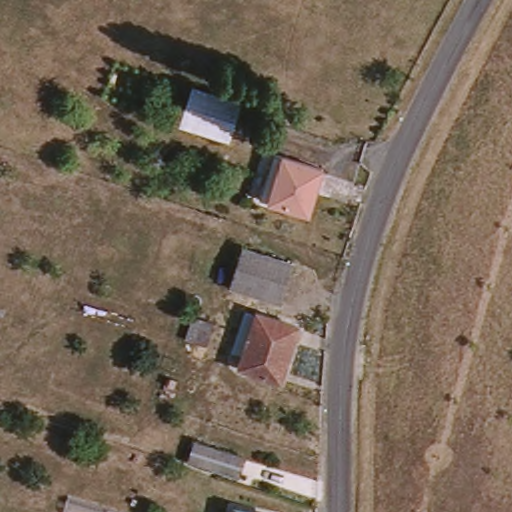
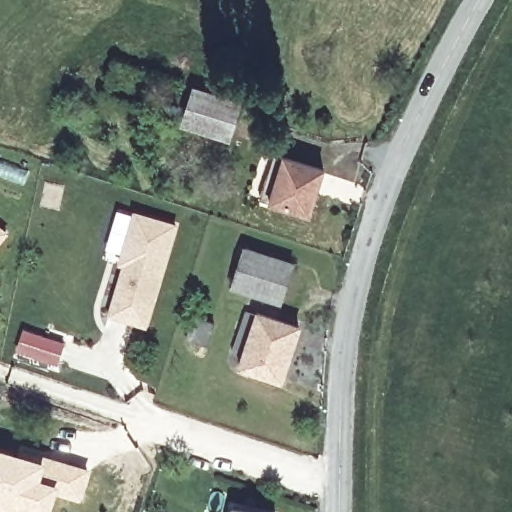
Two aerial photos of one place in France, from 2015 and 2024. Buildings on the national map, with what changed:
unchanged [(239,109),(228,144),(182,129),(193,94),(239,109)]
unchanged [(323,171),(310,215),(261,200),(275,156),(323,171)]
new [(133,212),(179,224),(149,327),(108,316),(123,265),(118,264),(133,212)]
new [(14,230),(0,249),(0,218),(14,230)]
unchanged [(292,264),(280,300),(232,285),(245,249),(292,264)]
unchanged [(213,324),(206,345),(186,338),(193,318),(213,324)]
unchanged [(299,332),(281,387),(239,374),(244,359),(233,355),(245,318),(256,321),(257,318),(299,332)]
new [(21,328),(64,342),(56,366),(13,351),(21,328)]
new [(42,459),(44,453),(91,468),(81,502),(56,494),(50,512),(0,512),(0,446),(42,459)]
unchanged [(242,512),(233,512),(233,510),(242,512)]

